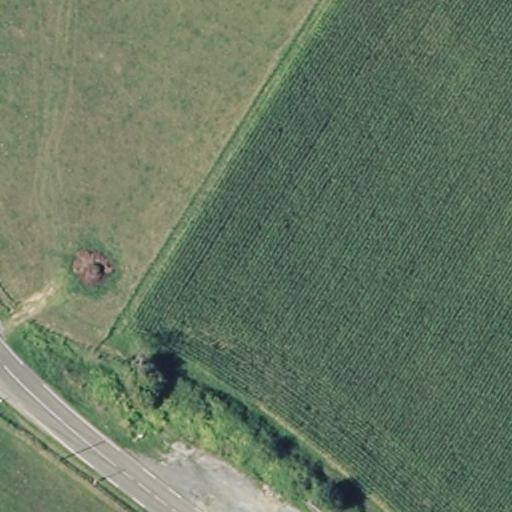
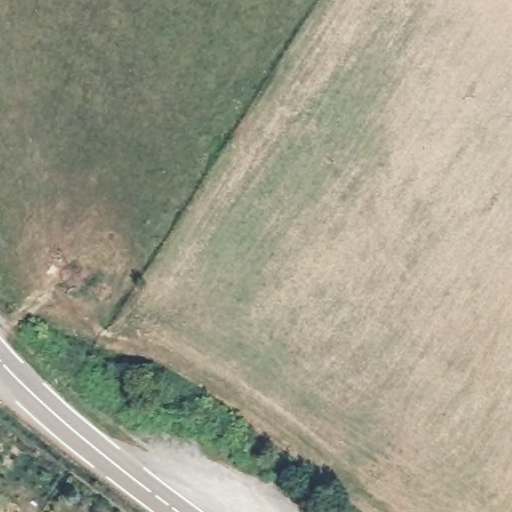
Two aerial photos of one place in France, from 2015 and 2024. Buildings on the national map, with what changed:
[]

